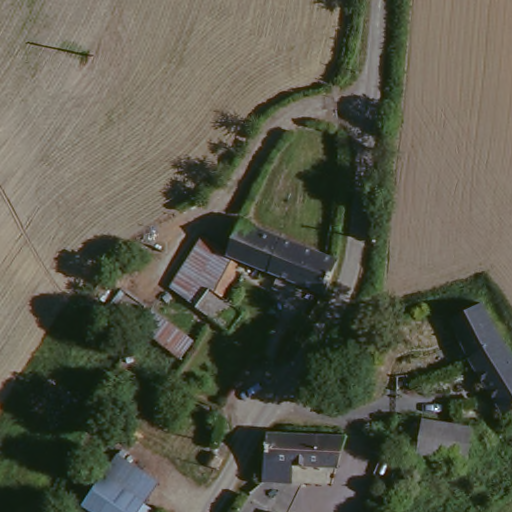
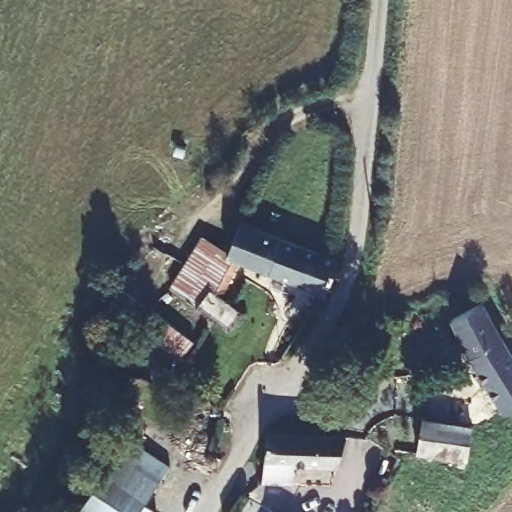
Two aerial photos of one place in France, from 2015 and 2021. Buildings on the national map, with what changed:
unchanged [(250,218),(338,254),(326,285),(323,291),(242,257),(234,254),(236,250),(250,218)]
unchanged [(234,254),(242,257),(236,268),(227,265),(203,309),(172,286),(209,238),(236,250),(234,254)]
unchanged [(233,332),(203,309),(227,265),(236,268),(224,296),(247,313),(233,332)]
unchanged [(183,353),(140,321),(154,303),(196,335),(183,353)]
unchanged [(453,323),(482,306),(502,338),(472,355),(453,323)]
unchanged [(512,354),(512,409),(507,411),(472,355),(502,338),(512,354)]
unchanged [(469,430),(465,461),(419,453),(423,422),(469,430)]
unchanged [(344,436),(353,437),(349,441),(347,447),(343,458),(341,465),(294,462),(293,477),(265,477),(265,462),(267,430),(277,431),(344,436)]
unchanged [(158,512),(105,512),(83,497),(103,470),(160,510),(158,512)]
unchanged [(277,512),(274,512),(275,511),(277,512)]

